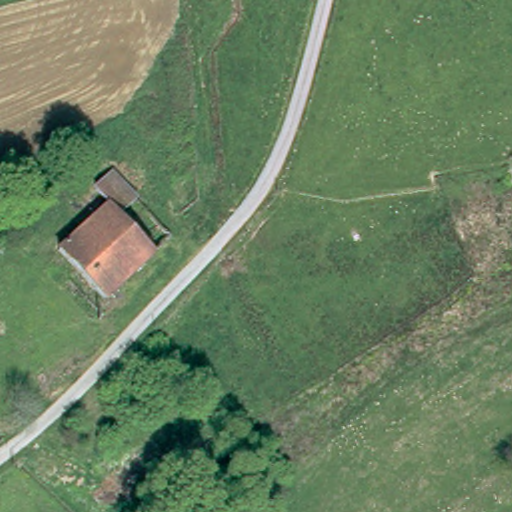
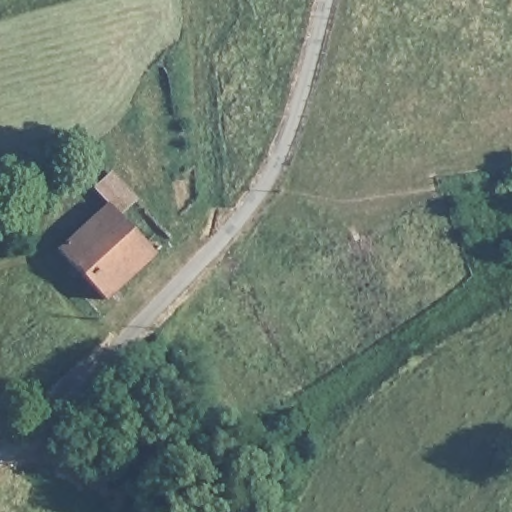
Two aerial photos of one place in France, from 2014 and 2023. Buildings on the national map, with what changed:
unchanged [(110,202),(154,247),(105,296),(61,252),(110,202)]

